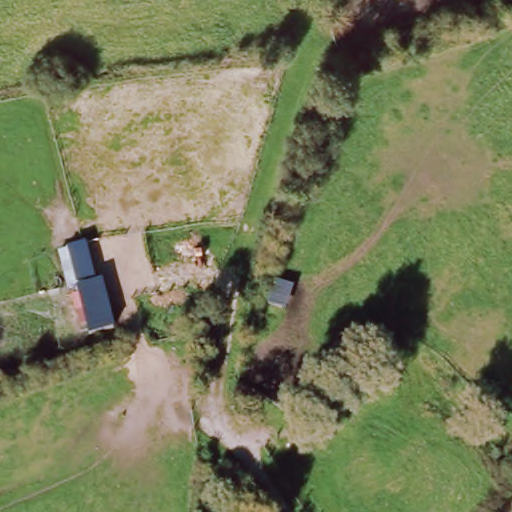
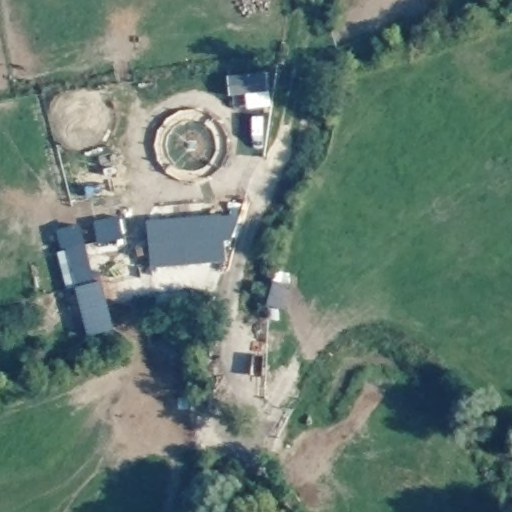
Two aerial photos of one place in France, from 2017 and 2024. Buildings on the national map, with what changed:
new [(225,242),(226,262),(151,267),(147,221),(234,214),(236,241),(225,242)]
unchanged [(89,336),(76,287),(67,290),(57,252),(64,250),(58,231),(81,226),(95,282),(101,281),(115,329),(89,336)]
unchanged [(275,285),(290,288),(284,312),(270,308),(275,285)]

